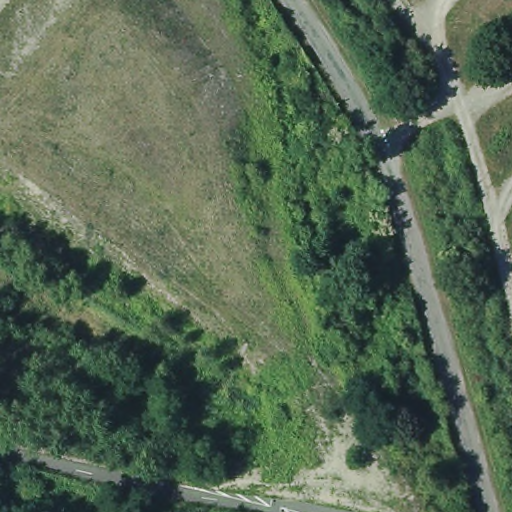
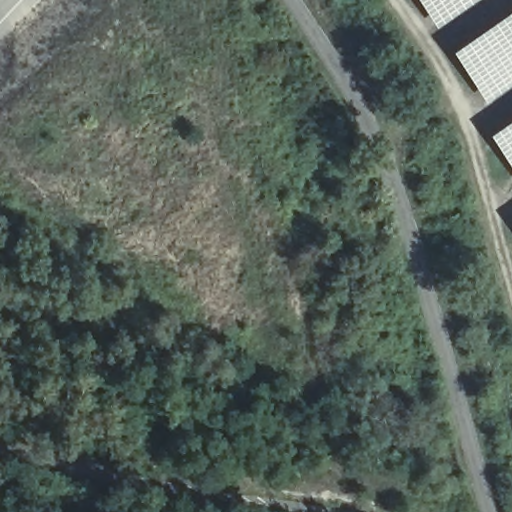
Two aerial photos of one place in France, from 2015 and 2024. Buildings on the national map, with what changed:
new [(416,0),(478,0),(436,29),(416,0)]
new [(452,55),(512,13),(512,86),(486,104),(452,55)]
new [(489,139),(512,122),(512,172),(489,139)]

